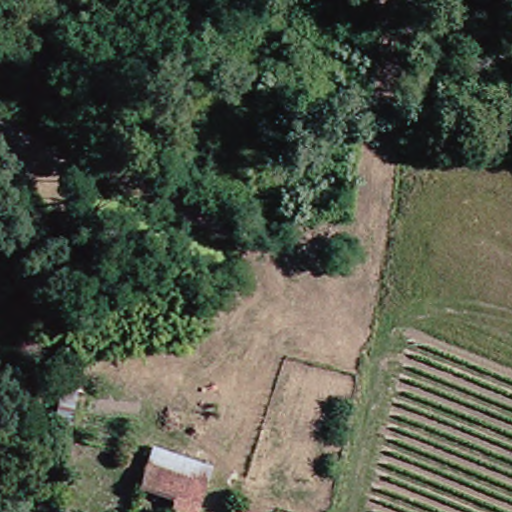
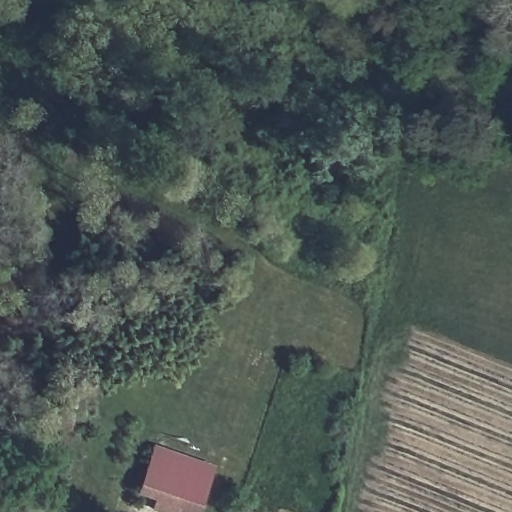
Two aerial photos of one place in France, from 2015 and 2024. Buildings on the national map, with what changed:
unchanged [(196,512),(193,512),(137,492),(150,451),(211,470),(196,512)]
unchanged [(227,512),(216,512),(217,509),(227,512)]

